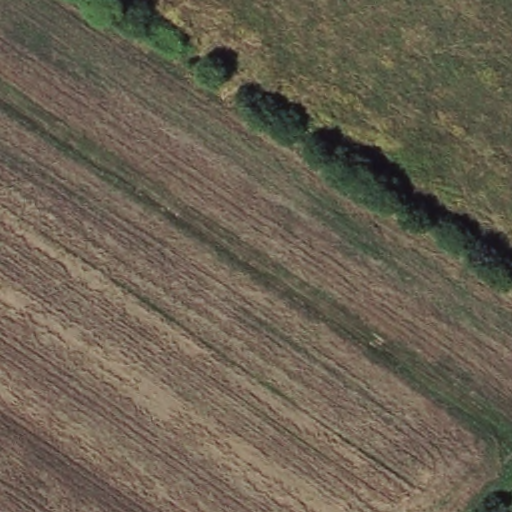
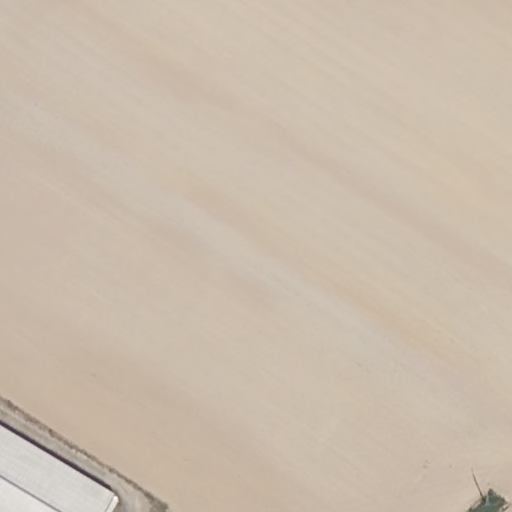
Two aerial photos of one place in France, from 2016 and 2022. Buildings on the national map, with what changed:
new [(114,493),(103,512),(0,512),(0,424),(114,493)]

